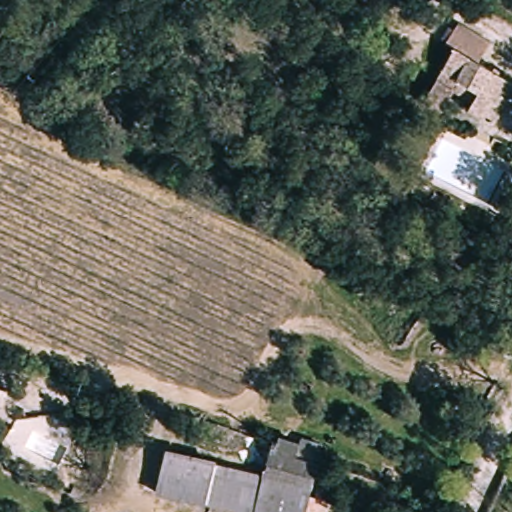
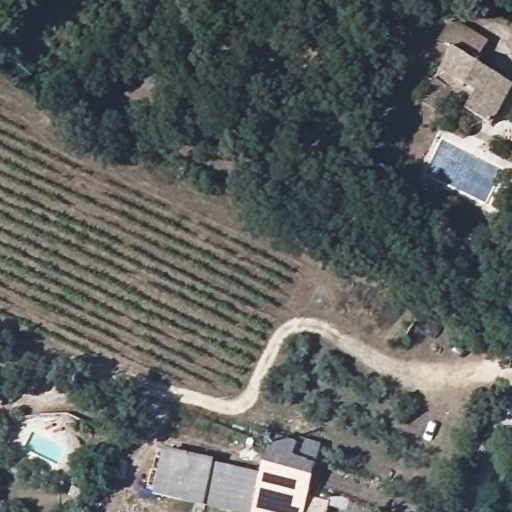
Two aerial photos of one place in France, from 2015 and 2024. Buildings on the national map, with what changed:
unchanged [(465,115),(469,106),(430,86),(449,52),(440,47),(453,25),(487,43),(475,65),(484,70),(512,86),(512,87),(492,127),(465,115)]
unchanged [(149,495),(165,449),(261,471),(277,433),(328,448),(302,512),(224,512),(149,495)]

